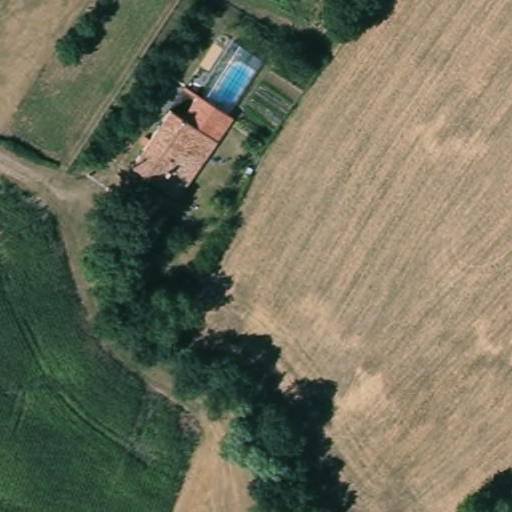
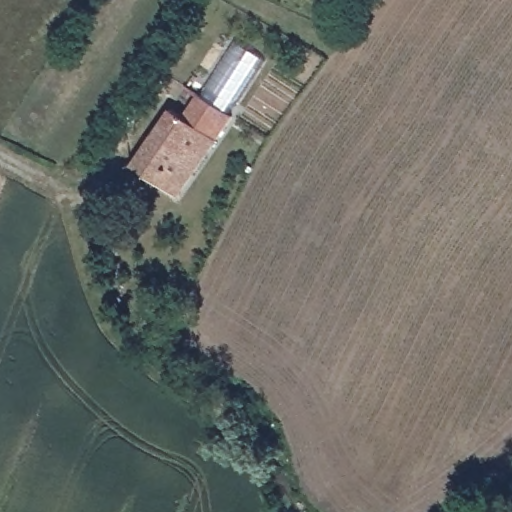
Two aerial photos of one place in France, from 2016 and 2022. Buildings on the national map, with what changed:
unchanged [(184,115),(197,95),(225,116),(211,136),(173,193),(125,162),(166,106),(184,115)]

